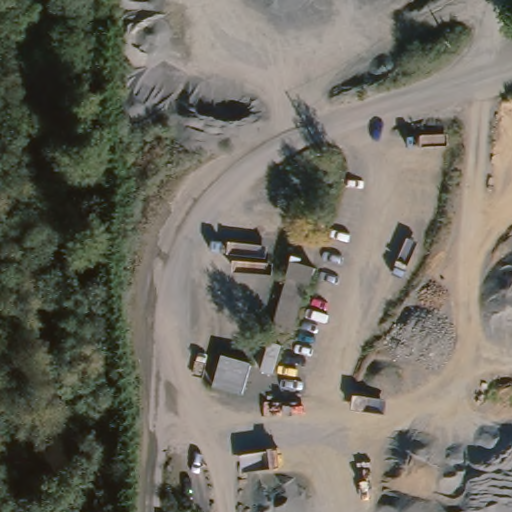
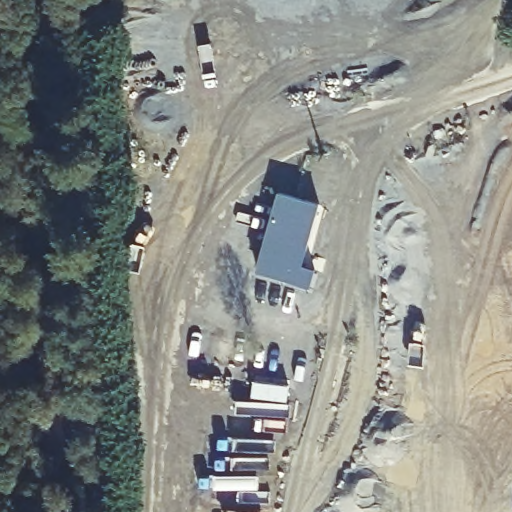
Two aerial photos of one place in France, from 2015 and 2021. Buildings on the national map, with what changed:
new [(320,202),(304,262),(315,265),(309,284),(294,333),(274,328),(288,280),(257,272),(279,193),(320,202)]
demolished [(317,270),(300,334),(275,328),(292,269),(317,270)]

